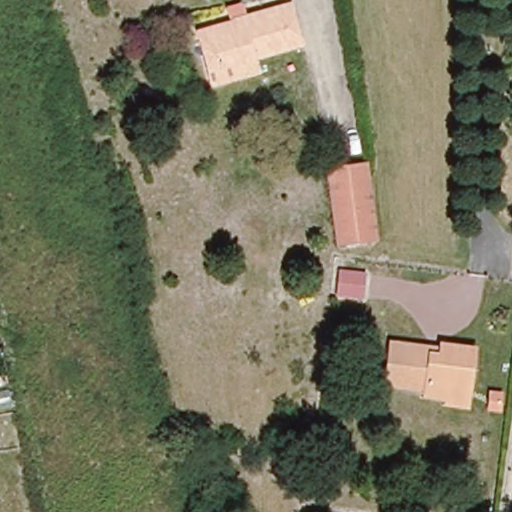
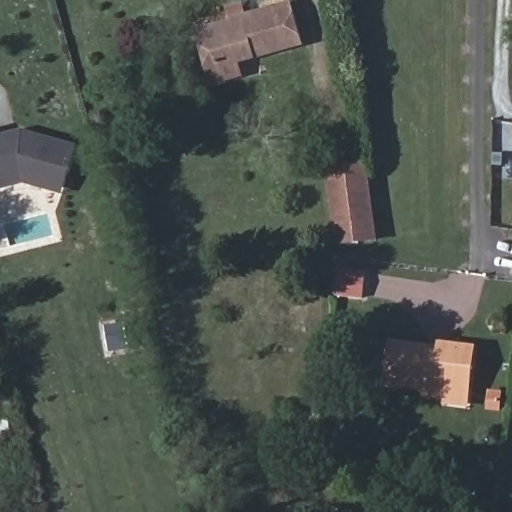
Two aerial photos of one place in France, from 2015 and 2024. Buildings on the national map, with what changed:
unchanged [(236,62),(240,79),(211,85),(197,31),(290,8),(301,46),(236,62)]
new [(63,196),(21,183),(0,188),(0,127),(1,126),(3,134),(21,130),(76,145),(63,196)]
unchanged [(339,248),(327,169),(365,165),(376,242),(339,248)]
unchanged [(336,298),(340,272),(363,274),(361,300),(336,298)]
unchanged [(446,408),(447,398),(420,396),(420,389),(386,387),(390,346),(438,352),(439,347),(470,350),(465,392),(463,409),(446,408)]

